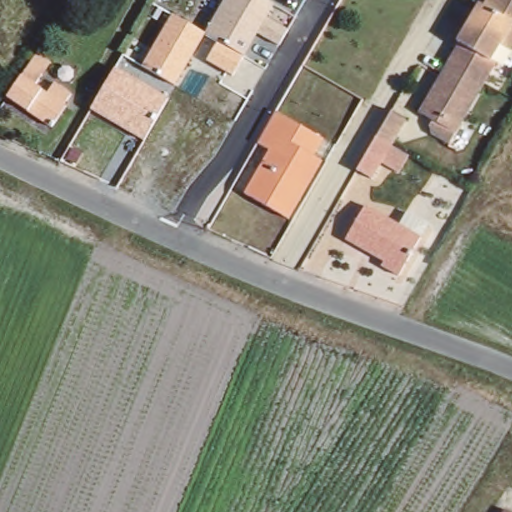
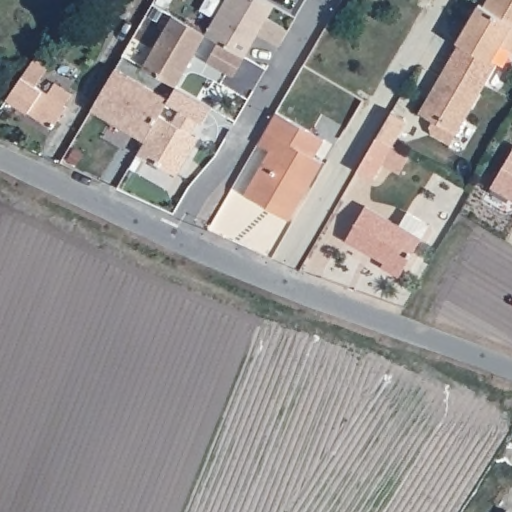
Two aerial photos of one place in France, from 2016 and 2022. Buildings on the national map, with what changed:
unchanged [(206,61),(220,40),(206,32),(223,0),(265,0),(274,5),(266,17),(288,29),(278,45),(257,34),(244,57),(232,76),(206,61)]
unchanged [(503,45),(501,47),(470,30),(467,28),(482,3),(486,5),(490,0),(512,0),(512,50),(503,45)]
unchanged [(142,65),(172,14),(206,32),(175,85),(142,65)]
unchanged [(439,137),(435,125),(436,121),(422,114),(444,75),(451,62),(462,42),(459,41),(467,28),(470,30),(501,47),(493,60),(500,64),(488,84),(481,96),(453,145),(439,137)]
unchanged [(71,109),(56,131),(12,101),(34,70),(35,69),(42,56),(55,65),(46,78),(40,88),(52,96),(60,85),(76,97),(70,107),(71,109)]
unchanged [(91,109),(115,68),(169,99),(144,141),(91,109)]
new [(138,153),(144,141),(160,115),(173,121),(180,109),(167,101),(169,99),(176,87),(211,108),(203,122),(200,120),(193,132),(200,136),(177,175),(138,153)]
unchanged [(404,175),(386,165),(379,180),(365,171),(383,139),(398,112),(412,120),(397,146),(415,156),(404,175)]
unchanged [(318,159),(326,164),(293,221),(250,196),(275,152),(262,145),(270,132),(280,114),(328,141),(318,159)]
unchanged [(387,272),(390,267),(351,245),(370,211),(405,231),(412,219),(432,230),(425,242),(427,244),(405,281),(387,272)]
unchanged [(511,512),(510,512),(510,511),(511,512)]

